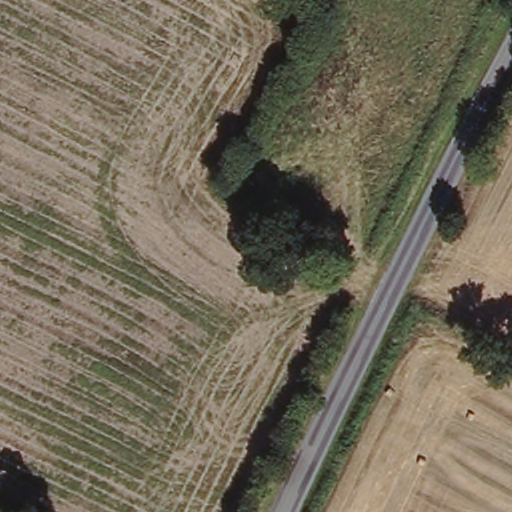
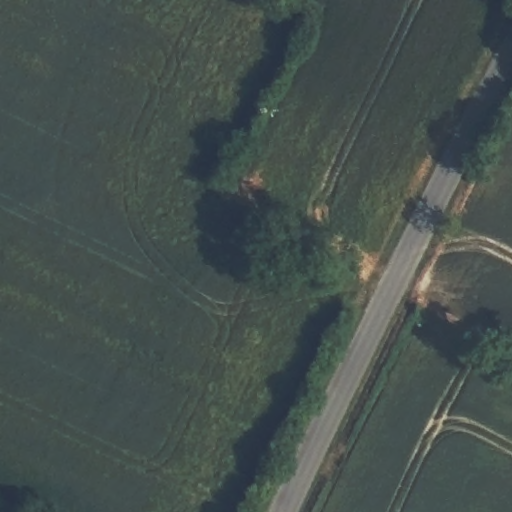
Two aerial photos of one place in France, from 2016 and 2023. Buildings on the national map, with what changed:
[]

